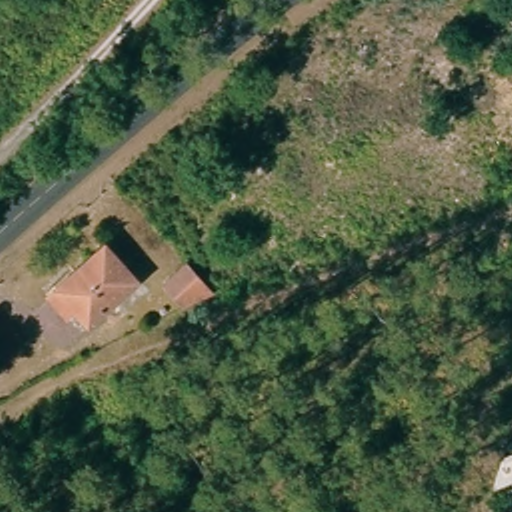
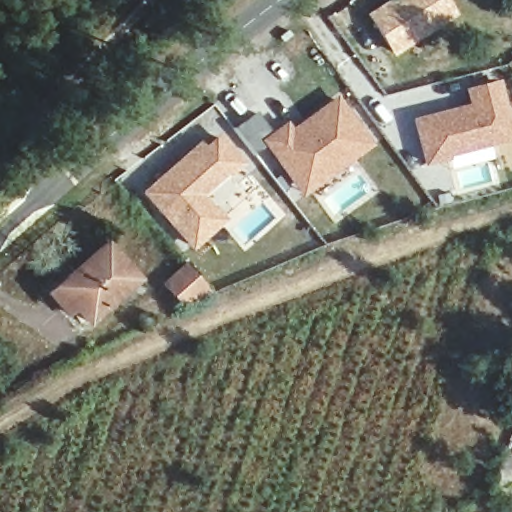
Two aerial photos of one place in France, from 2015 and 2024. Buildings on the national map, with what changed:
new [(448,0),(459,16),(394,58),(365,13),(385,0),(448,0)]
new [(415,122),(471,109),(468,92),(497,84),(510,139),(447,155),(448,158),(426,163),(415,122)]
new [(292,126),(338,94),(374,146),(301,197),(263,147),(254,154),(233,128),(257,111),(271,130),(287,119),(292,126)]
new [(199,138),(204,143),(221,130),(247,161),(206,195),(226,219),(191,250),(138,191),(199,138)]
unchanged [(50,299),(58,292),(107,249),(139,285),(90,329),(76,312),(68,319),(50,299)]
unchanged [(217,298),(187,311),(166,289),(190,269),(217,298)]
unchanged [(505,452),(512,450),(512,477),(494,484),(505,452)]

